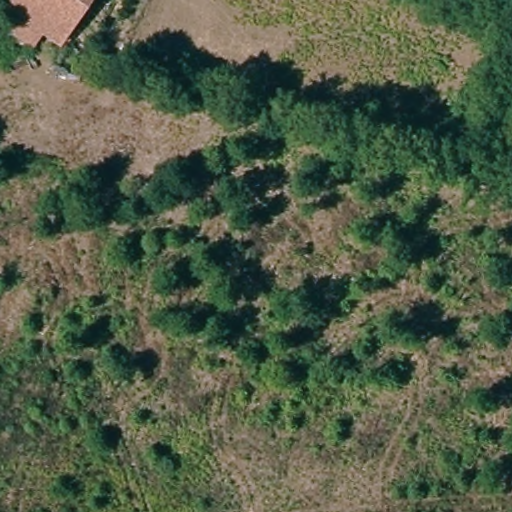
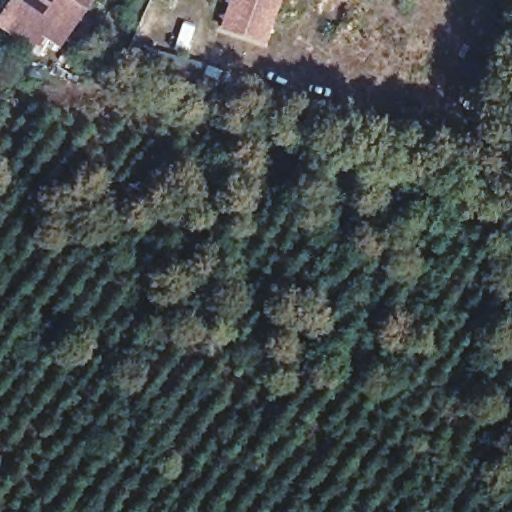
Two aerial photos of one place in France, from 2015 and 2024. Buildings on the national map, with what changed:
unchanged [(0,25),(5,16),(17,0),(94,0),(56,52),(41,41),(34,50),(0,27),(0,25)]
new [(261,41),(222,24),(232,0),(278,0),(261,41)]

